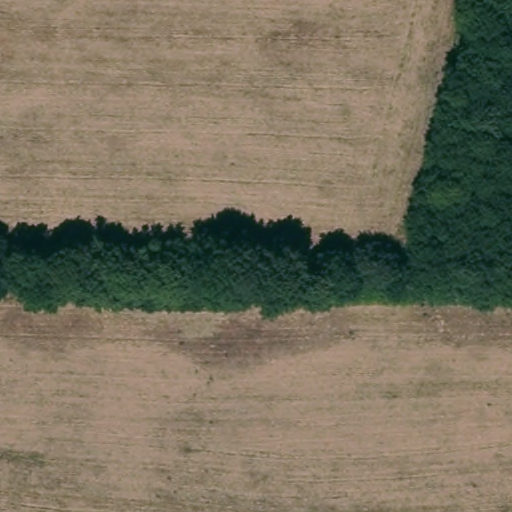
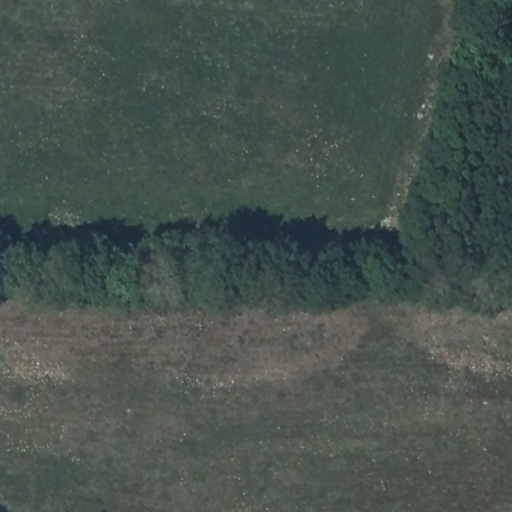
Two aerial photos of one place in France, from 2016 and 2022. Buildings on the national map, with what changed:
[]

